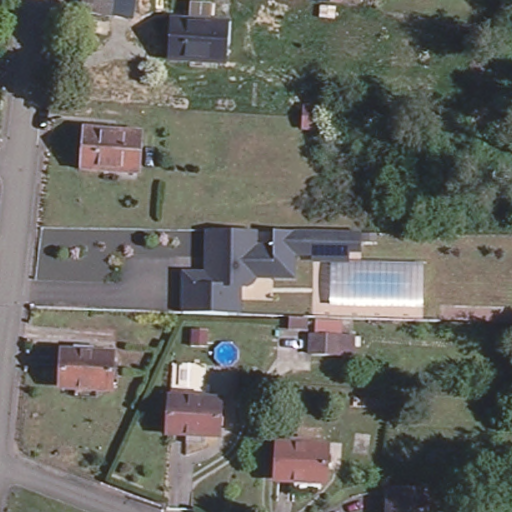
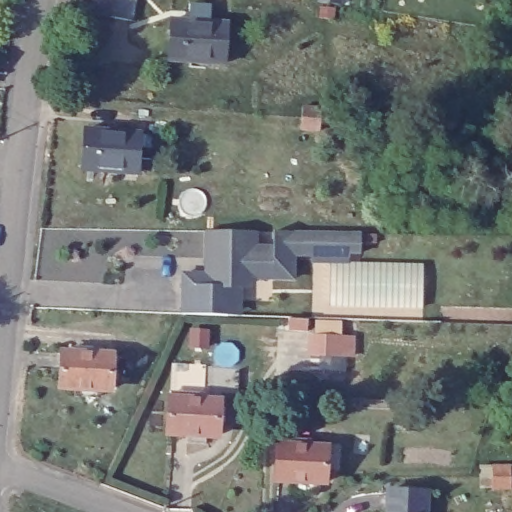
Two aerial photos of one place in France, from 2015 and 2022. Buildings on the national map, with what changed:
unchanged [(117,0),(116,4),(113,21),(83,15),(85,0),(117,0)]
unchanged [(321,0),(345,0),(344,9),(332,7),(320,5),(321,0)]
unchanged [(227,61),(170,59),(171,20),(228,23),(227,61)]
unchanged [(306,122),(306,111),(325,112),(324,124),(324,134),(304,134),(306,122)]
unchanged [(136,170),(79,164),(83,126),(141,133),(136,170)]
unchanged [(254,277),(254,278),(254,279),(253,282),(253,283),(252,285),(251,285),(250,287),(249,288),(248,288),(248,289),(246,289),(244,290),(243,290),(241,290),(239,290),(239,300),(226,300),(225,315),(188,314),(180,313),(182,273),(212,274),(213,259),(205,258),(206,229),(256,229),(256,245),(273,246),(273,229),(294,230),(294,255),(294,277),(273,277),(273,271),(255,270),(254,275),(254,277)]
unchanged [(361,230),(361,250),(361,260),(424,259),(424,304),(331,302),(332,264),(313,264),(313,255),(294,255),(294,230),(341,230),(361,230)]
unchanged [(311,324),(310,335),(291,334),(291,324),(311,324)]
unchanged [(356,361),(316,359),(316,339),(356,342),(356,361)]
unchanged [(76,356),(77,350),(98,351),(98,357),(111,358),(110,389),(62,388),(63,355),(76,356)]
unchanged [(223,441),(171,438),(173,404),(184,404),(185,398),(208,399),(208,405),(224,406),(223,441)]
unchanged [(284,446),(284,439),(308,439),(308,446),(324,447),(324,481),(273,479),(274,445),(284,446)]
unchanged [(512,468),(512,491),(494,492),(494,479),(494,468),(512,468)]
unchanged [(429,498),(429,512),(389,512),(389,496),(429,498)]

